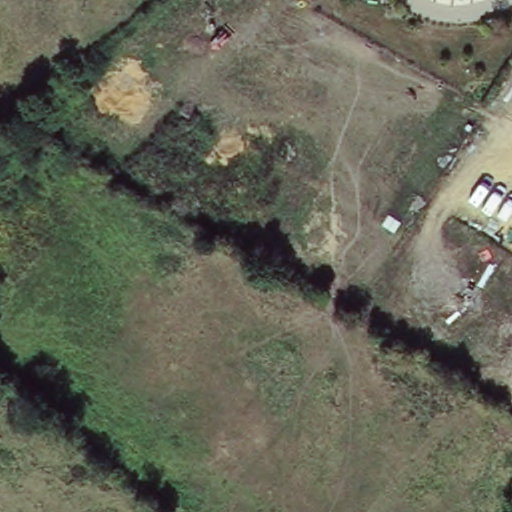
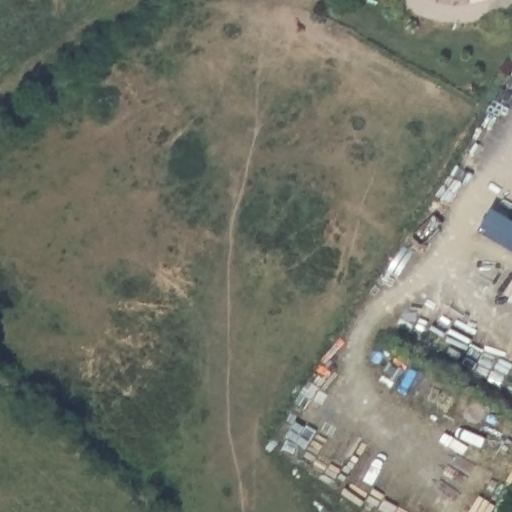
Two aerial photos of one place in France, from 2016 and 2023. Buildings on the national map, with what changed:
new [(512,221),(512,251),(479,232),(492,209),(512,221)]

